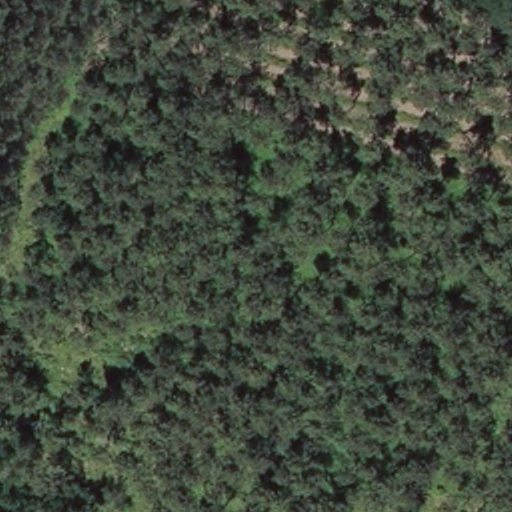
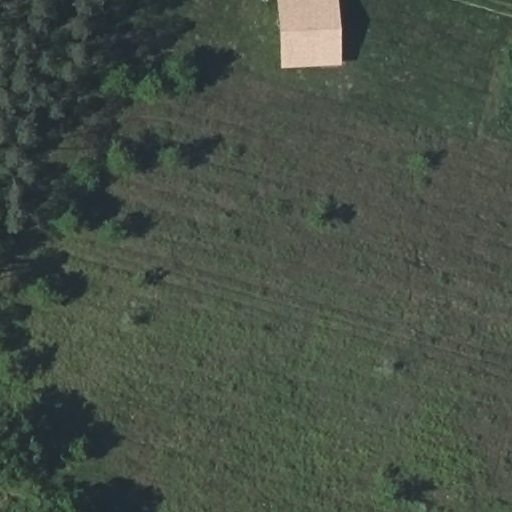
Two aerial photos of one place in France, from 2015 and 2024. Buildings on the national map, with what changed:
new [(341,66),(280,69),(277,0),(338,0),(341,66)]

